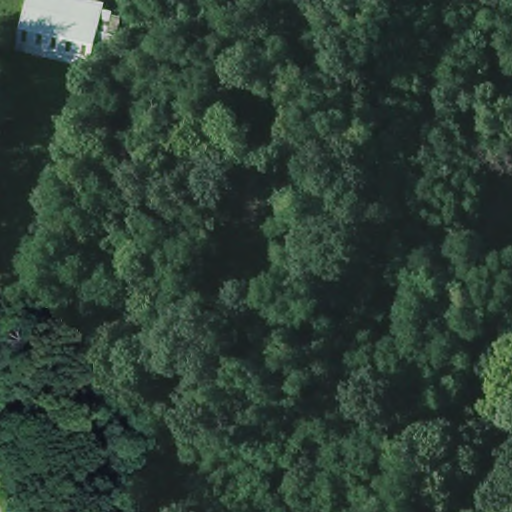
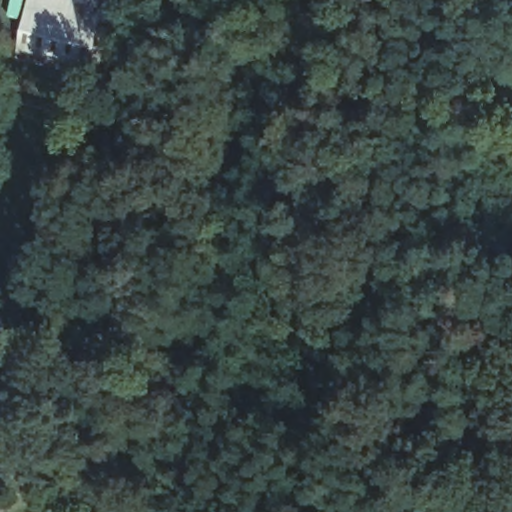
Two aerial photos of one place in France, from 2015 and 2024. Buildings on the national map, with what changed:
unchanged [(97,59),(94,67),(21,46),(34,0),(90,0),(112,6),(110,12),(119,15),(114,36),(123,39),(115,64),(97,59)]

